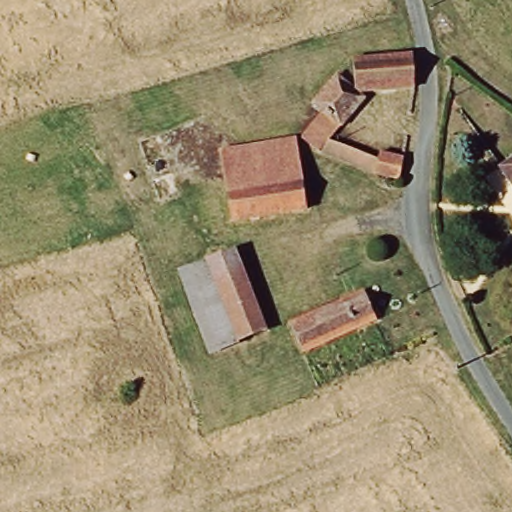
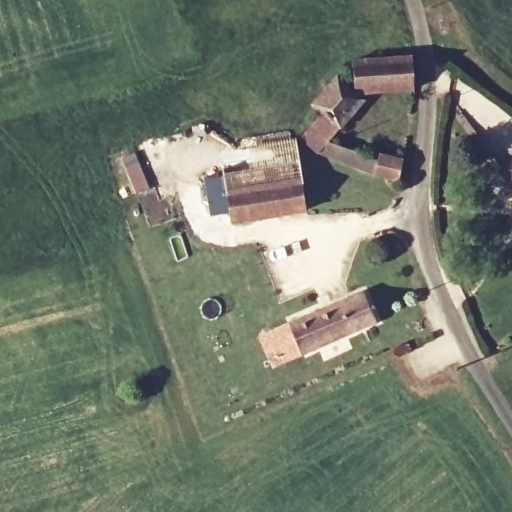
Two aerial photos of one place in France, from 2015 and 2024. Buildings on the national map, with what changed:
unchanged [(369,94),(330,141),(367,164),(374,155),(400,160),(398,182),(376,182),(360,177),(324,157),(300,141),(313,127),(300,116),(343,69),(355,81),(355,55),(417,52),(419,69),(416,85),(371,84),(364,87),(369,94)]
unchanged [(239,216),(233,180),(231,165),(228,147),(298,137),(300,141),(302,159),(304,171),(309,205),(239,216)]
unchanged [(512,186),(501,167),(512,161),(512,186)]
demolished [(235,247),(269,332),(214,356),(178,270),(235,247)]
unchanged [(289,319),(364,290),(378,322),(303,347),(289,319)]

